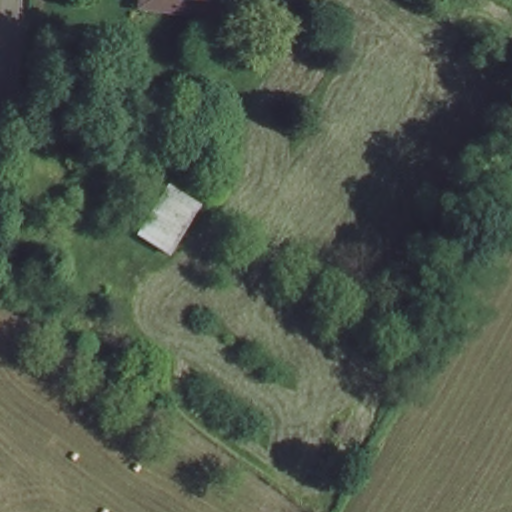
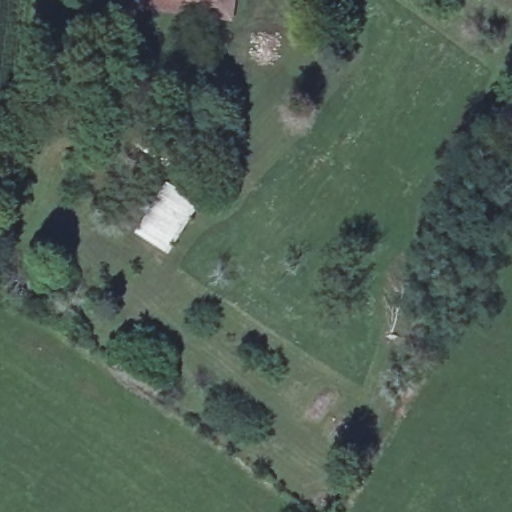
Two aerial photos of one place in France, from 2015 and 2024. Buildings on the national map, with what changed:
unchanged [(233,19),(138,6),(139,0),(235,0),(233,19)]
unchanged [(182,150),(172,168),(122,136),(134,119),(182,150)]
unchanged [(202,205),(171,250),(145,232),(173,187),(202,205)]

